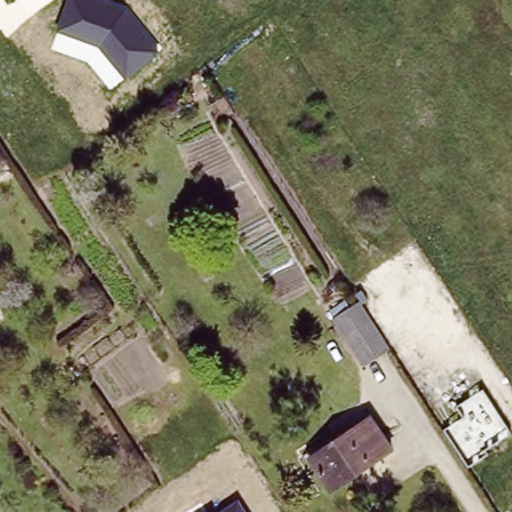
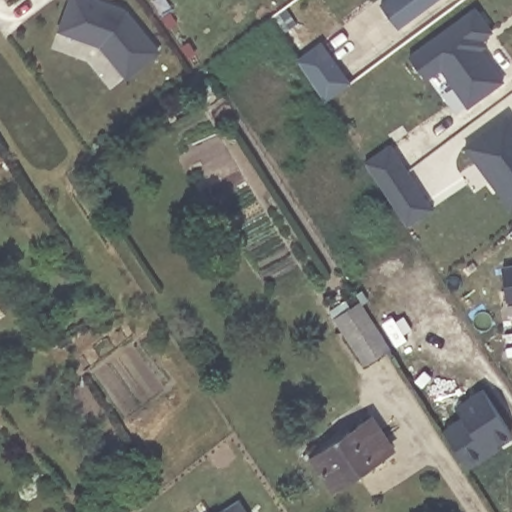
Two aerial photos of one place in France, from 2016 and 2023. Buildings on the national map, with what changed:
unchanged [(127,10),(161,51),(124,79),(98,45),(55,31),(67,0),(98,0),(127,10)]
new [(389,0),(439,0),(397,30),(380,6),(389,0)]
new [(470,107),(442,69),(427,79),(411,55),(477,7),(495,31),(486,38),(491,45),(484,50),(505,80),(470,107)]
new [(329,57),(350,85),(324,104),(305,74),(329,57)]
new [(512,124),(512,213),(465,149),(507,117),(512,124)]
new [(409,227),(366,163),(392,144),(434,210),(409,227)]
new [(512,269),(512,303),(506,303),(502,270),(512,269)]
unchanged [(365,363),(345,332),(334,316),(360,299),(371,315),(369,316),(389,347),(365,363)]
unchanged [(483,390),(512,433),(512,434),(486,450),(489,455),(469,469),(442,431),(464,418),(457,407),(483,390)]
unchanged [(397,445),(337,487),(315,455),(375,414),(397,445)]
unchanged [(247,512),(226,512),(241,502),(247,512)]

